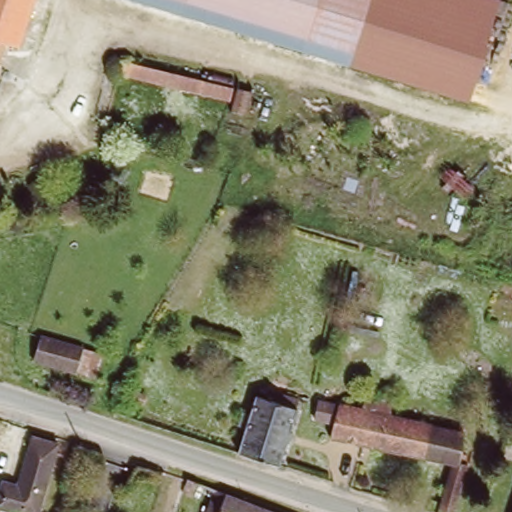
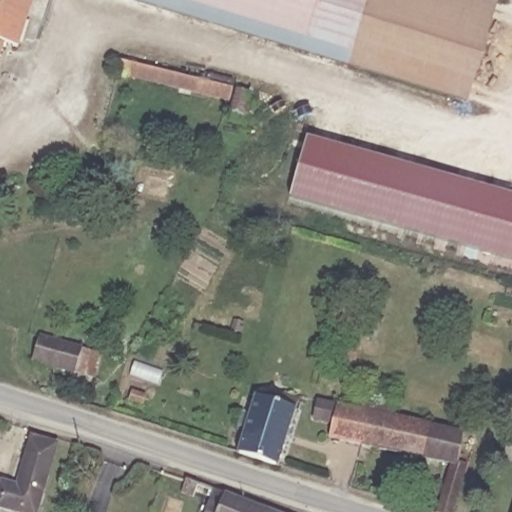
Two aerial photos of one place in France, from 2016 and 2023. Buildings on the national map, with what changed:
unchanged [(8,45),(0,67),(0,0),(40,0),(21,50),(8,45)]
unchanged [(130,0),(500,0),(470,102),(130,0)]
unchanged [(231,104),(122,76),(125,64),(235,91),(231,104)]
new [(310,139),(512,195),(512,259),(293,196),(310,139)]
unchanged [(35,366),(42,341),(88,353),(81,378),(35,366)]
unchanged [(260,396),(297,410),(281,466),(244,454),(260,396)]
unchanged [(470,437),(469,446),(464,468),(475,470),(460,512),(443,512),(455,470),(333,444),(341,410),(366,415),(370,399),(398,406),(399,401),(420,406),(416,426),(446,432),(470,437)]
unchanged [(6,492),(20,495),(32,447),(57,453),(43,512),(1,512),(6,492)]
unchanged [(278,512),(216,512),(220,499),(206,495),(204,501),(193,497),(198,481),(278,512)]

